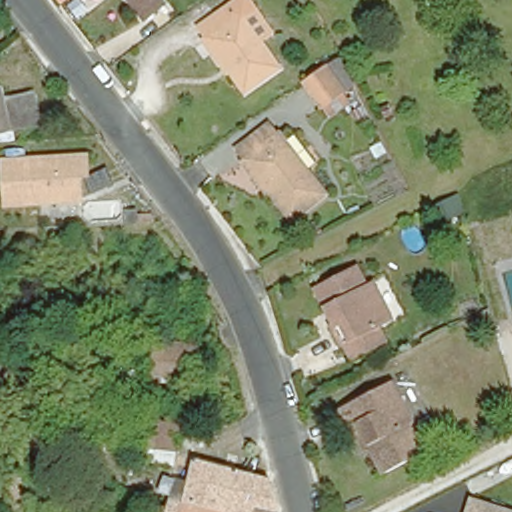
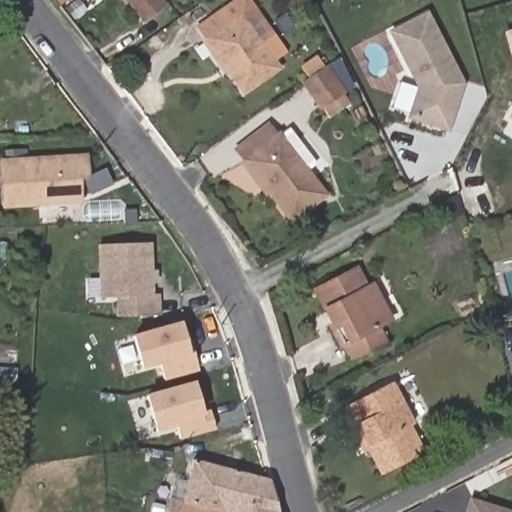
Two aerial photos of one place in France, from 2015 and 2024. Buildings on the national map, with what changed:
unchanged [(166,14),(144,31),(142,28),(120,0),(155,0),(166,14)]
unchanged [(216,62),(218,61),(209,46),(201,33),(220,19),(250,0),(261,17),(276,41),(264,49),(282,77),(245,99),(233,79),(228,81),(225,76),(216,62)]
new [(417,88),(387,31),(428,10),(466,83),(450,133),(407,119),(417,88)]
new [(512,29),(512,66),(502,32),(512,29)]
unchanged [(341,96),(319,111),(303,86),(325,71),(341,96)]
demolished [(5,87),(6,97),(34,91),(40,126),(0,132),(0,87),(5,87)]
new [(512,115),(512,120),(509,119),(512,115)]
unchanged [(283,217),(268,197),(263,200),(259,195),(248,181),(249,180),(240,166),(230,153),(263,128),(273,140),(278,147),(287,140),(308,168),(300,174),(314,191),(319,197),(288,223),(283,217)]
unchanged [(40,206),(5,207),(3,162),(87,155),(88,179),(80,179),(80,198),(80,204),(40,206)]
unchanged [(451,197),(457,209),(443,217),(437,205),(451,197)]
unchanged [(124,225),(122,225),(121,214),(134,213),(135,225),(124,225)]
new [(161,294),(161,313),(128,315),(117,298),(102,299),(99,244),(152,241),(153,270),(158,270),(158,282),(154,282),(154,294),(161,294)]
unchanged [(313,292),(355,269),(365,288),(371,285),(390,319),(377,327),(385,342),(350,361),(342,348),(340,349),(330,329),(332,327),(324,311),(313,292)]
new [(164,381),(159,364),(141,370),(131,335),(181,321),(195,372),(164,381)]
demolished [(81,371),(88,335),(127,342),(121,377),(117,377),(81,371)]
demolished [(143,344),(189,352),(179,407),(133,399),(143,344)]
new [(210,413),(215,429),(180,439),(175,423),(154,429),(144,395),(193,382),(202,416),(210,413)]
unchanged [(349,436),(346,437),(335,417),(387,389),(409,430),(404,432),(418,458),(379,480),(365,454),(360,456),(349,436)]
demolished [(175,433),(171,458),(141,453),(144,438),(122,434),(124,424),(129,425),(175,433)]
unchanged [(175,512),(177,504),(180,504),(185,486),(188,486),(194,464),(269,485),(277,512),(175,512)]
unchanged [(487,512),(466,512),(468,506),(487,512)]

